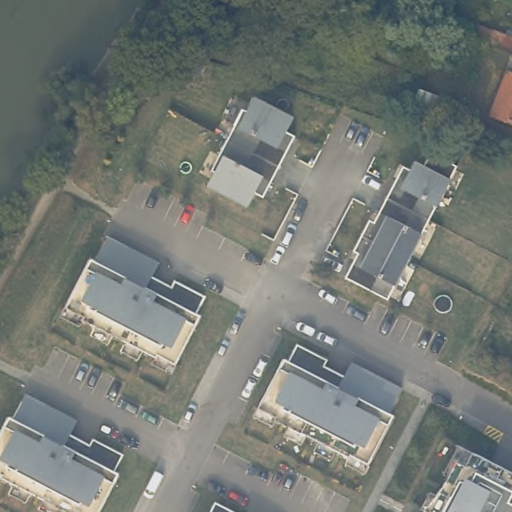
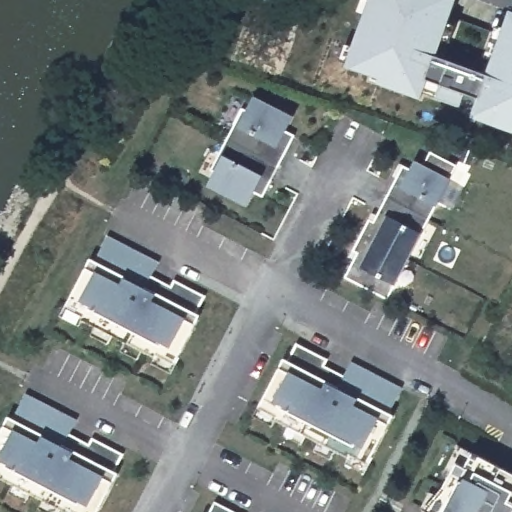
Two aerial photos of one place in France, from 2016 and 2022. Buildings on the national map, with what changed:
new [(473,117),(475,110),(461,106),(436,97),(437,94),(422,90),(418,96),(377,82),(379,77),(344,65),(369,0),(454,0),(436,55),(489,74),(511,10),(512,11),(512,131),(473,117)]
demolished [(512,35),(512,51),(486,42),(491,28),(512,35)]
demolished [(487,112),(509,54),(512,55),(512,121),(487,112)]
unchanged [(240,108),(245,110),(252,96),(290,116),(283,130),(292,135),(277,165),(225,139),(240,108)]
unchanged [(277,165),(261,196),(252,192),(245,205),(206,185),(213,172),(209,170),(225,139),(277,165)]
unchanged [(401,165),(409,169),(413,160),(421,165),(428,151),(455,165),(427,219),(419,215),(384,197),(401,165)]
unchanged [(384,197),(419,215),(427,219),(406,258),(386,247),(359,234),(367,218),(372,220),(384,197)]
unchanged [(351,250),(359,234),(386,247),(406,258),(385,298),(355,282),(343,276),(355,251),(351,250)]
unchanged [(203,315),(177,364),(159,355),(158,357),(84,320),(86,317),(68,307),(93,259),(97,261),(111,235),(162,262),(154,276),(164,281),(174,287),(177,280),(208,296),(199,313),(203,315)]
unchanged [(326,365),(336,370),(346,375),(354,360),(405,387),(392,412),(396,415),(371,463),(353,455),(352,457),(278,419),(279,416),(262,407),(286,358),(291,360),(299,343),(330,358),(326,365)]
unchanged [(96,512),(65,512),(0,479),(0,431),(7,417),(11,419),(24,394),(75,420),(68,435),(78,440),(88,445),(91,438),(121,455),(112,471),(116,473),(96,512)]
unchanged [(428,512),(454,460),(463,465),(470,451),(512,473),(512,512),(428,512)]
unchanged [(239,512),(213,512),(218,501),(239,512)]

